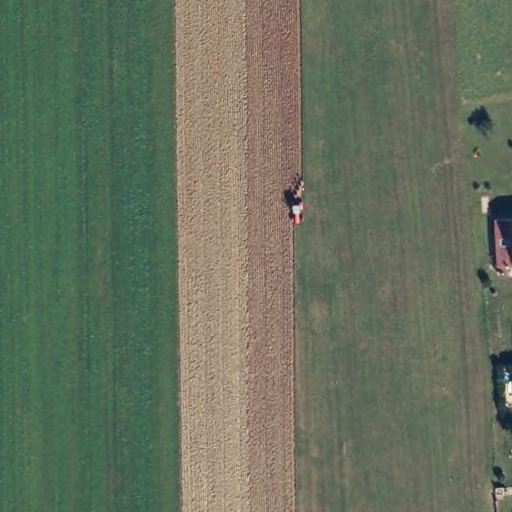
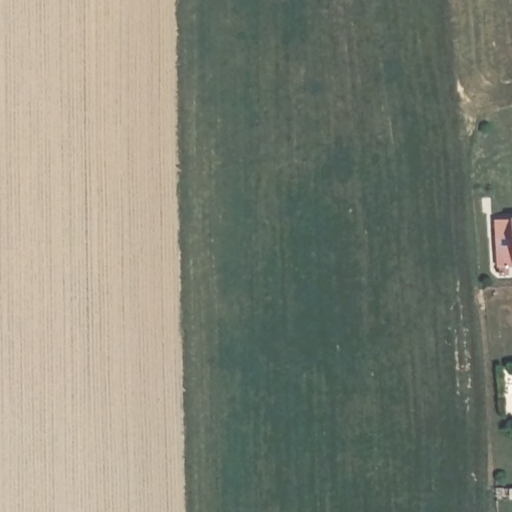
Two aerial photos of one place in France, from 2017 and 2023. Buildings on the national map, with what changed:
unchanged [(512,214),(512,258),(511,214),(512,214)]

